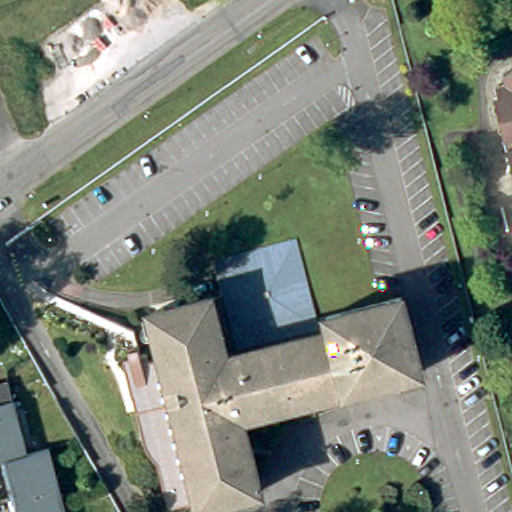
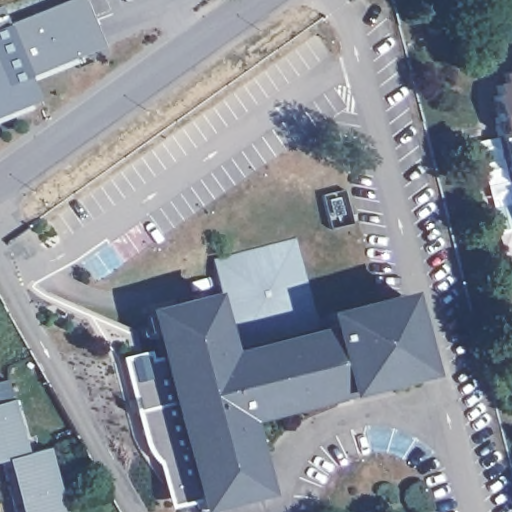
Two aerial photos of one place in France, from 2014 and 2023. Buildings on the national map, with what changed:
new [(0,6),(8,24),(68,0),(84,0),(103,46),(30,77),(38,102),(0,116),(0,7),(0,6)]
unchanged [(495,92),(492,83),(501,80),(499,71),(510,68),(508,64),(512,63),(512,180),(490,94),(495,92)]
unchanged [(225,295),(214,252),(295,230),(316,319),(327,317),(330,327),(238,349),(232,324),(219,327),(212,299),(225,295)]
unchanged [(219,327),(226,357),(331,331),(330,327),(327,317),(402,297),(421,373),(242,417),(260,490),(200,506),(196,492),(175,497),(167,468),(155,462),(148,451),(146,444),(137,413),(133,397),(123,360),(130,359),(128,351),(139,349),(141,356),(148,354),(150,362),(163,359),(152,314),(212,299),(219,327)]
unchanged [(0,460),(0,383),(17,379),(22,398),(35,451),(6,458),(0,460)]
unchanged [(6,458),(35,451),(53,448),(66,504),(38,512),(20,512),(6,458)]
unchanged [(66,504),(68,512),(38,512),(66,504)]

